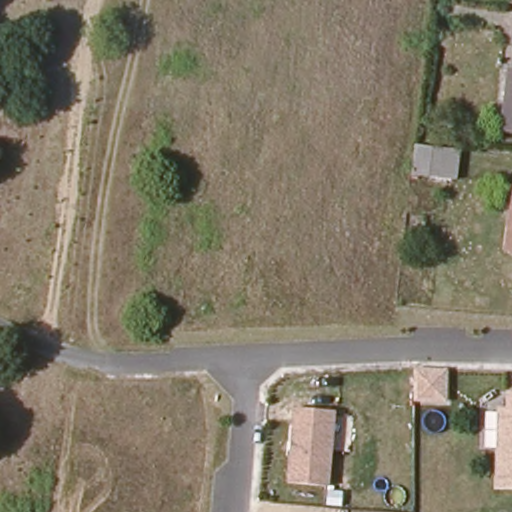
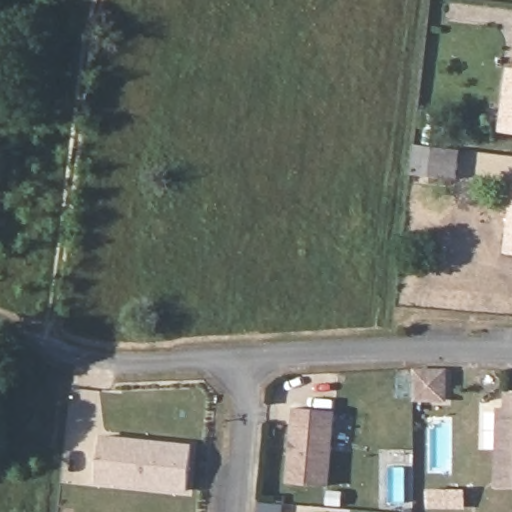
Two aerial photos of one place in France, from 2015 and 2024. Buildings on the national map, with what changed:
unchanged [(500,126),(506,82),(508,70),(512,71),(512,128),(500,126)]
unchanged [(458,147),(453,176),(411,172),(416,141),(458,147)]
unchanged [(508,252),(508,240),(512,212),(512,252),(508,252)]
unchanged [(418,369),(448,369),(448,399),(418,399),(418,369)]
unchanged [(500,480),(499,406),(507,406),(507,390),(512,390),(512,481),(500,480)]
unchanged [(296,408),(335,411),(329,486),(290,482),(296,408)]
new [(196,444),(192,494),(100,486),(104,437),(196,444)]

